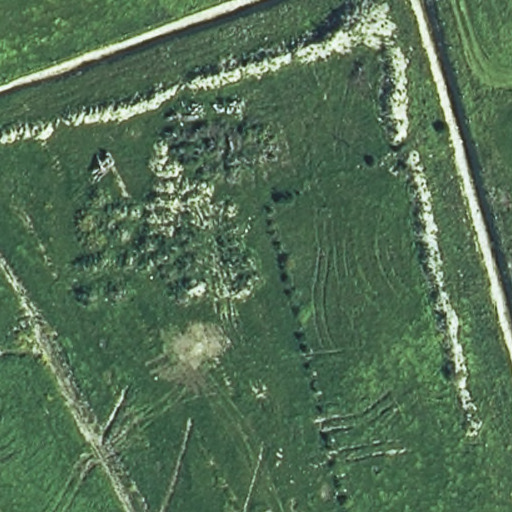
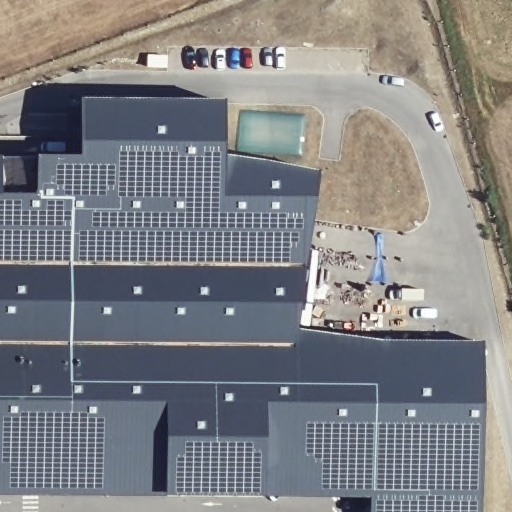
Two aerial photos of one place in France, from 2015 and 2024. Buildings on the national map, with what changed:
new [(34,157),(76,157),(78,102),(223,102),(222,157),(317,172),(304,266),(295,331),(382,343),(481,343),(480,512),(368,512),(368,500),(260,499),(162,497),(0,497),(0,158),(34,157)]

